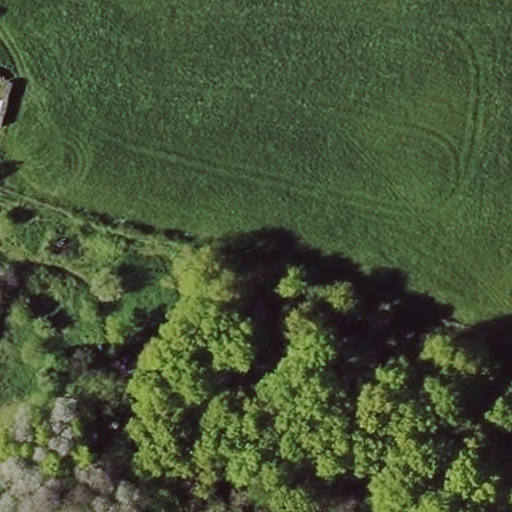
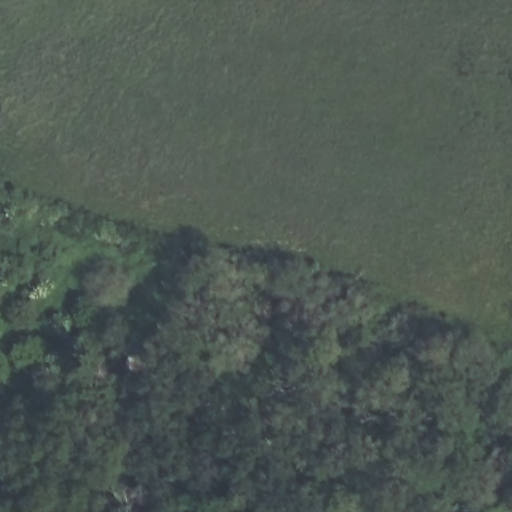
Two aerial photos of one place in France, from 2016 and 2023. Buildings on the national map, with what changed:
[]

